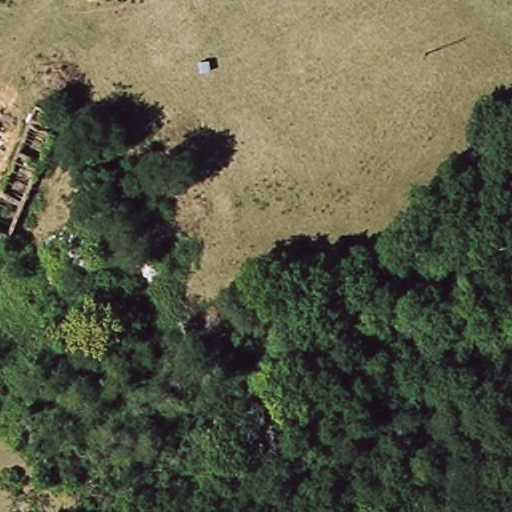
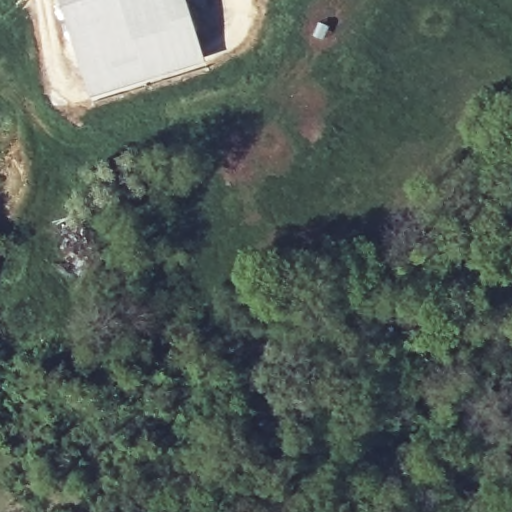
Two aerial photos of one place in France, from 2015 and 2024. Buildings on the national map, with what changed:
new [(188,45),(72,81),(48,0),(174,0),(188,45)]
unchanged [(34,118),(46,121),(51,107),(65,113),(13,248),(8,247),(0,268),(0,202),(34,118)]
unchanged [(1,295),(0,299),(0,294),(1,295)]
unchanged [(1,304),(0,307),(0,299),(1,304)]

